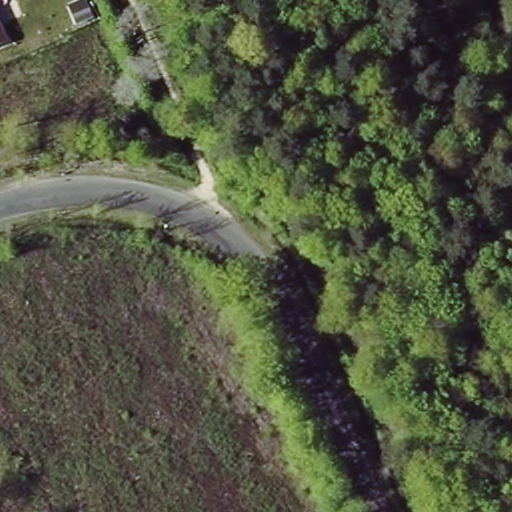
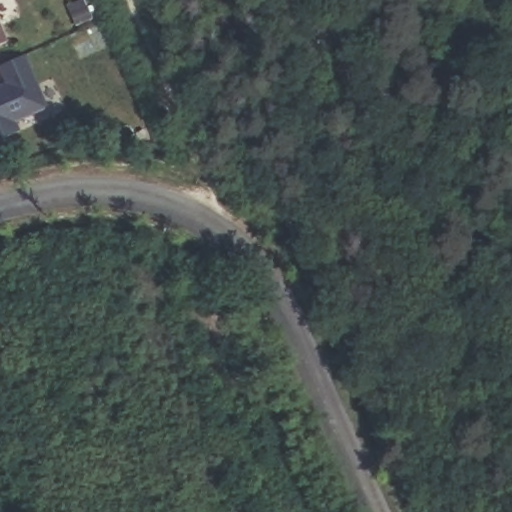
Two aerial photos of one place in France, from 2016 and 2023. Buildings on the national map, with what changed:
unchanged [(0,44),(0,20),(9,40),(0,44)]
new [(0,75),(0,63),(20,54),(43,106),(12,120),(16,130),(0,137),(0,88),(5,85),(0,75)]

